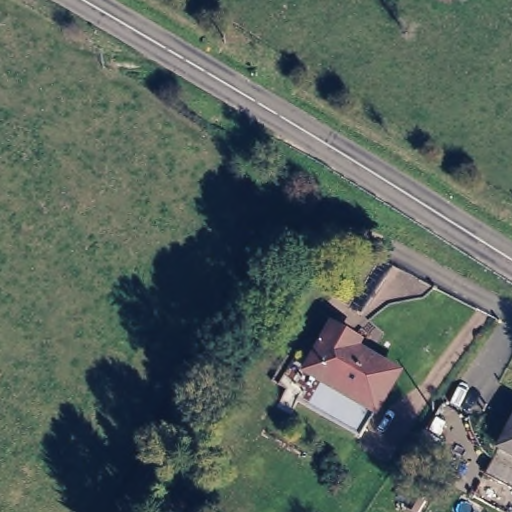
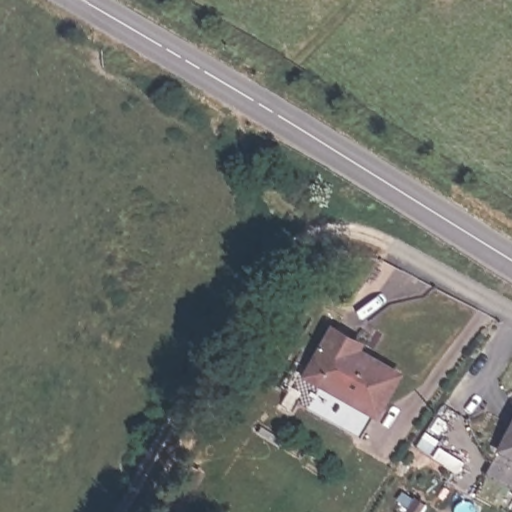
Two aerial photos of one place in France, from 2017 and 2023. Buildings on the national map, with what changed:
unchanged [(334,321),(367,338),(363,344),(401,369),(377,416),(299,373),(334,321)]
unchanged [(512,418),(512,484),(485,469),(512,418)]

